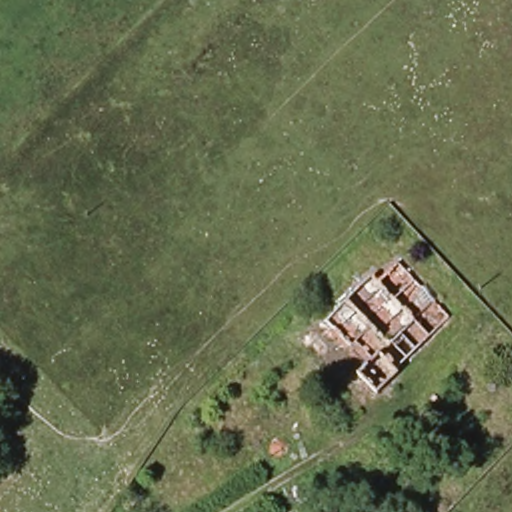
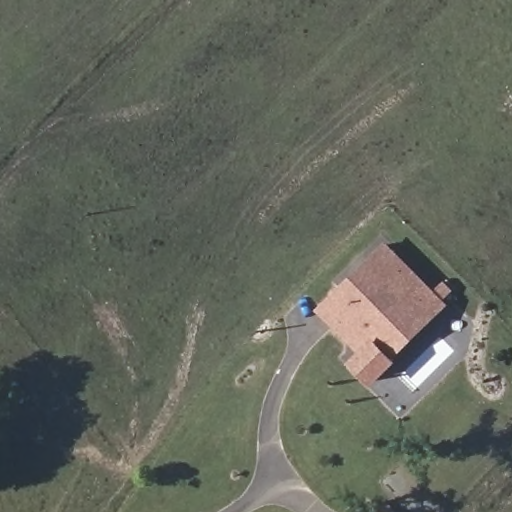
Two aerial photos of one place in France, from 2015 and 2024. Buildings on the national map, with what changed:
new [(387,240),(433,288),(442,280),(452,291),(443,300),(447,303),(395,359),(371,384),(348,360),(358,351),(316,310),(387,240)]
demolished [(407,380),(387,402),(347,368),(360,353),(333,331),(382,273),(388,278),(398,266),(456,314),(417,360),(401,347),(387,363),(402,377),(407,380)]
new [(396,512),(379,512),(388,503),(396,512)]

